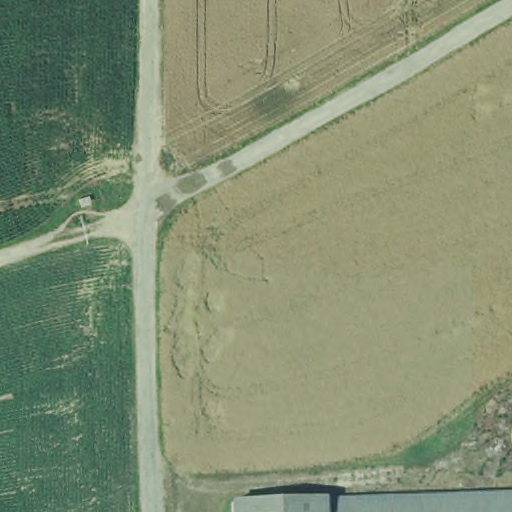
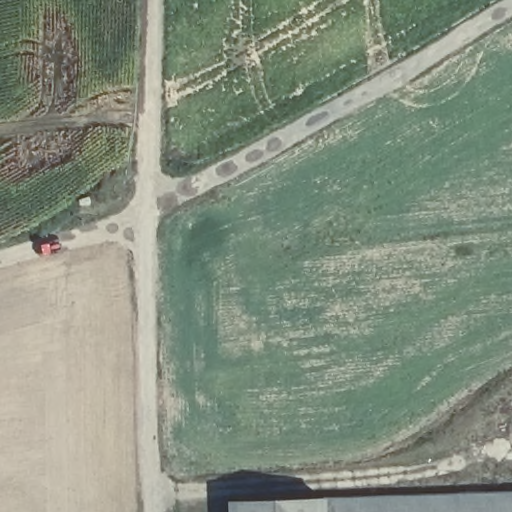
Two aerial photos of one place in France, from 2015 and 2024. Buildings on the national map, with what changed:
unchanged [(512,494),(512,512),(230,512),(230,502),(325,499),(512,494)]

